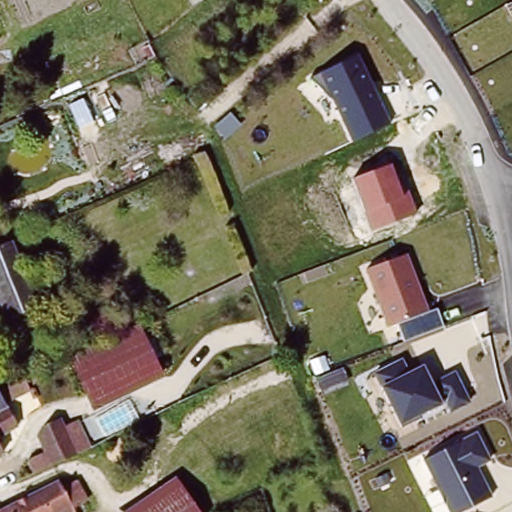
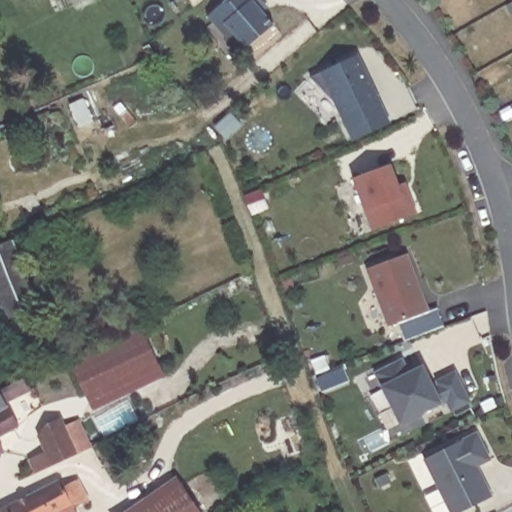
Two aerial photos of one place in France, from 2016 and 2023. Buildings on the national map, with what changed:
new [(259,0),(267,11),(265,14),(273,25),(245,48),(234,35),(228,40),(208,17),(227,0),(259,0)]
unchanged [(310,77),(359,56),(391,123),(353,141),(334,102),(310,77)]
unchanged [(353,180),(390,165),(403,194),(408,191),(417,213),(371,231),(353,180)]
unchanged [(9,242),(38,311),(1,326),(0,323),(0,245),(9,242)]
unchanged [(367,271),(407,256),(429,312),(438,309),(444,327),(405,341),(398,323),(387,327),(367,271)]
unchanged [(86,406),(63,362),(135,327),(158,370),(86,406)]
unchanged [(451,412),(445,402),(422,416),(423,418),(403,427),(375,373),(403,360),(410,372),(423,365),(433,383),(455,372),(470,402),(451,412)]
unchanged [(0,439),(0,398),(8,394),(12,404),(3,410),(15,430),(0,439)]
unchanged [(28,466),(44,456),(34,435),(58,423),(78,458),(35,480),(28,466)]
unchanged [(489,457),(479,463),(491,497),(451,512),(448,512),(423,455),(477,432),(489,457)]
unchanged [(2,456),(0,456),(0,452),(2,456)]
unchanged [(59,483),(71,477),(85,502),(73,509),(74,512),(0,512),(0,511),(59,483)]
unchanged [(174,481),(195,512),(126,512),(174,481)]

